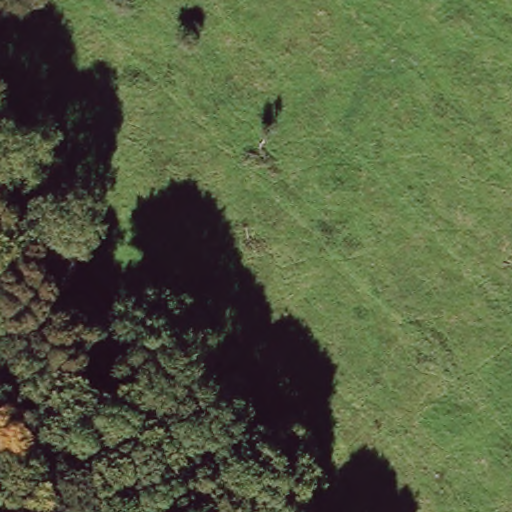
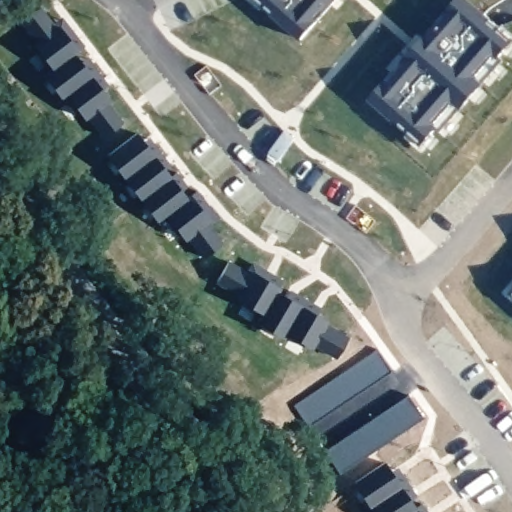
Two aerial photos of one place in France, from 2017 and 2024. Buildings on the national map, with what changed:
new [(263,7),(260,11),(248,0),(337,0),(302,42),(263,7)]
new [(341,0),(348,0),(345,4),(341,0)]
new [(460,66),(482,40),(462,24),(454,35),(442,24),(462,0),(468,0),(512,37),(512,42),(512,53),(510,55),(505,51),(440,129),(433,124),(430,128),(436,134),(425,147),(372,102),(425,37),(460,66)]
new [(102,139),(87,118),(84,120),(67,96),(62,101),(42,74),(50,67),(32,44),(33,42),(17,20),(40,5),(54,25),(57,23),(80,51),(77,53),(84,62),(88,58),(108,86),(104,90),(112,101),(108,104),(122,123),(102,139)]
new [(454,35),(462,24),(482,40),(460,66),(425,37),(442,24),(454,35)]
new [(202,259),(187,240),(184,241),(166,217),(157,224),(106,155),(137,132),(187,197),(192,194),(195,196),(198,192),(218,220),(210,227),(222,243),(202,259)]
new [(247,272),(252,263),(283,281),(280,287),(278,291),(328,322),(327,325),(347,337),(335,361),(313,347),(312,349),(286,334),(283,339),(257,323),(262,313),(235,298),(237,296),(215,283),(228,259),(247,272)]
new [(512,281),(512,301),(502,292),(512,281)]
new [(392,371),(313,426),(296,404),(375,348),(392,371)]
new [(422,417),(340,474),(325,451),(407,395),(422,417)]
new [(365,502),(360,503),(353,493),(358,490),(352,483),(385,461),(419,512),(373,512),(365,502)]

